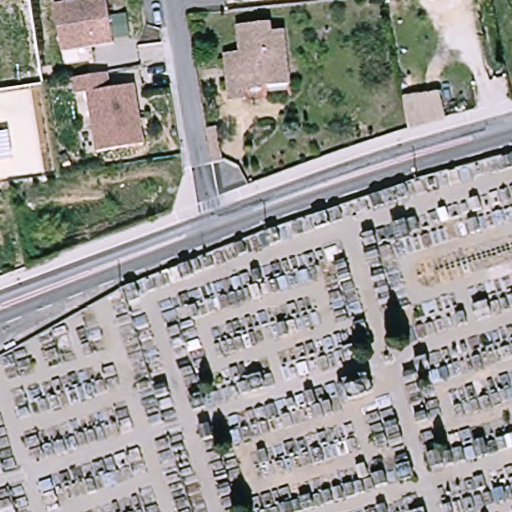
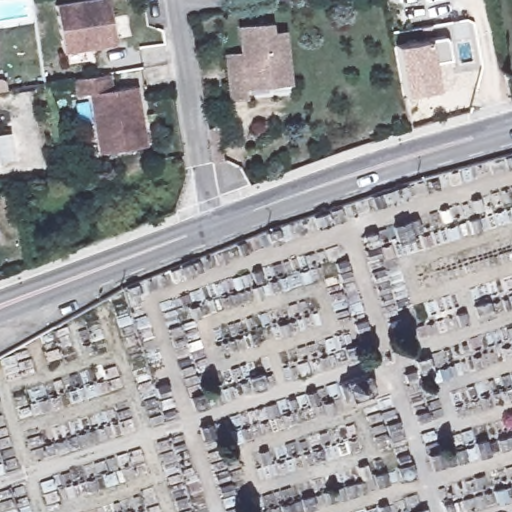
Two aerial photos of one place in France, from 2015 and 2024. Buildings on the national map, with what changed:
unchanged [(79,0),(110,0),(118,42),(66,51),(58,4),(79,0)]
unchanged [(275,31),(288,30),(297,86),(275,89),(274,82),(251,85),(254,104),(237,105),(231,58),(245,55),(242,30),(274,25),(275,31)]
new [(395,44),(427,38),(442,36),(447,40),(449,58),(432,61),(437,88),(403,95),(395,44)]
unchanged [(110,71),(112,87),(137,83),(146,142),(99,150),(90,91),(78,93),(75,77),(110,71)]
unchanged [(448,117),(411,127),(404,95),(442,89),(448,117)]

